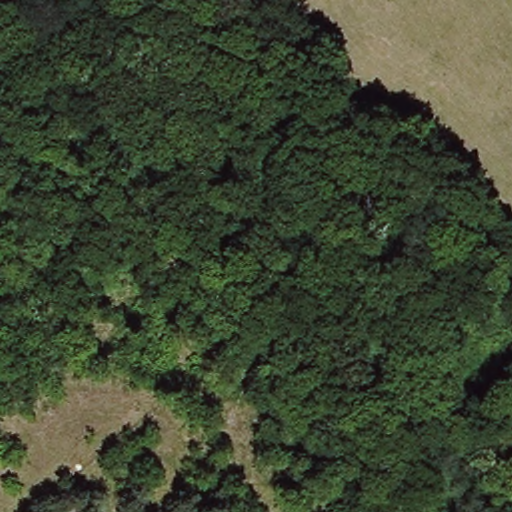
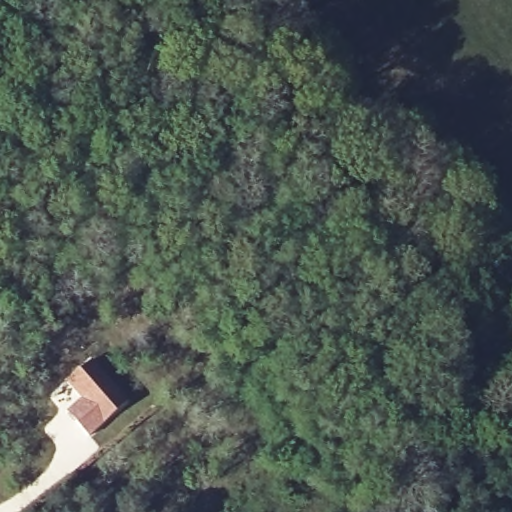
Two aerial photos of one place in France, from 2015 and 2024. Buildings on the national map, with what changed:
new [(128,402),(89,437),(65,411),(78,399),(65,383),(92,360),(128,402)]

